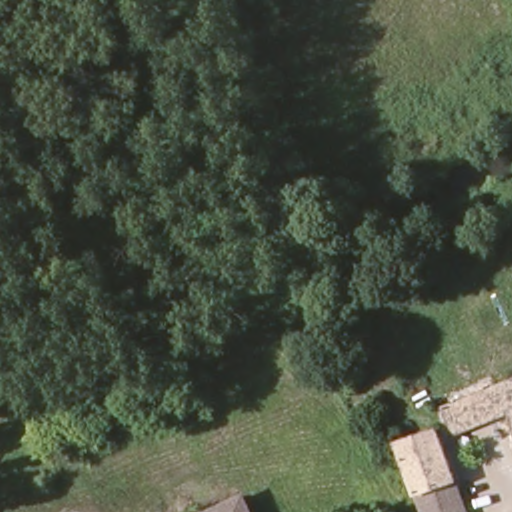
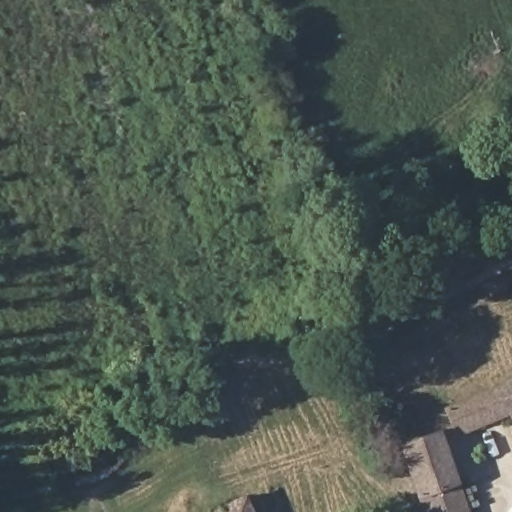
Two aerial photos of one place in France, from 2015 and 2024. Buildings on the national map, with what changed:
unchanged [(465,430),(455,402),(512,383),(512,414),(465,430)]
unchanged [(470,512),(426,512),(404,445),(443,431),(470,512)]
unchanged [(216,511),(250,496),(257,512),(217,512),(216,511)]
unchanged [(216,511),(217,512),(213,512),(216,511)]

